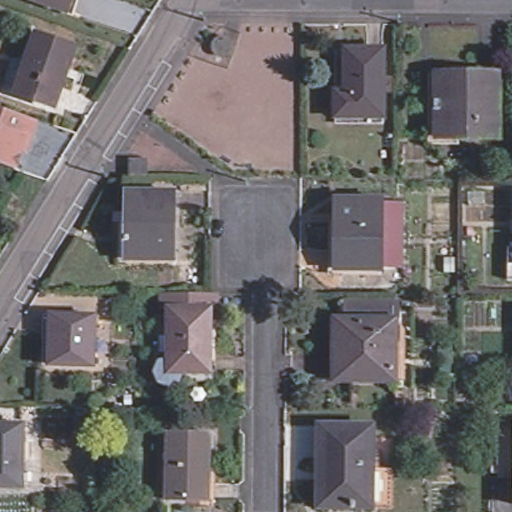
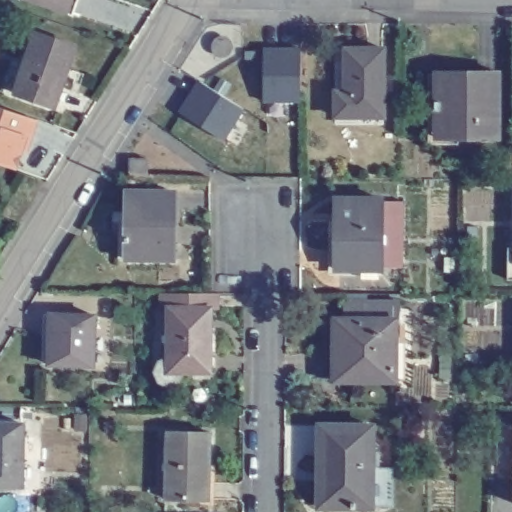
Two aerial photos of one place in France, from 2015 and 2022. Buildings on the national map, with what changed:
unchanged [(25,0),(73,0),(67,15),(25,0)]
unchanged [(76,50),(53,110),(13,96),(35,36),(76,50)]
unchanged [(222,56),(220,57),(217,57),(215,57),(213,56),(212,55),(210,54),(210,51),(209,50),(210,47),(210,45),(212,44),(213,42),(215,41),(217,41),(220,41),(222,42),(223,44),(225,45),(225,47),(225,50),(225,51),(225,54),(223,55),(222,56)]
unchanged [(380,116),(333,117),(333,90),(341,90),(342,49),(380,49),(380,116)]
new [(263,50),(300,50),(300,101),(263,101),(263,50)]
unchanged [(436,130),(435,81),(436,75),(457,74),(497,74),(497,136),(456,137),(437,137),(436,130)]
new [(180,112),(200,81),(243,110),(223,140),(180,112)]
unchanged [(23,158),(17,175),(0,169),(0,114),(38,128),(32,145),(28,159),(23,158)]
unchanged [(141,179),(123,180),(124,161),(142,161),(141,179)]
unchanged [(168,259),(120,259),(122,192),(169,192),(168,259)]
unchanged [(392,270),(322,270),(322,202),(392,202),(392,270)]
unchanged [(505,247),(512,247),(512,281),(505,281),(505,247)]
unchanged [(163,389),(152,385),(146,373),(150,364),(162,360),(162,311),(152,311),(152,296),(202,295),(212,295),(212,311),(205,311),(205,373),(180,372),(174,385),(163,389)]
unchanged [(90,315),(90,363),(48,363),(48,315),(90,315)]
unchanged [(395,378),(335,378),(335,317),(395,317),(395,378)]
unchanged [(370,505),(319,505),(319,425),(371,423),(370,505)]
unchanged [(19,488),(0,488),(0,426),(20,426),(19,488)]
unchanged [(509,478),(505,478),(505,431),(512,432),(512,506),(509,506),(509,478)]
unchanged [(210,436),(207,503),(165,501),(167,435),(210,436)]

